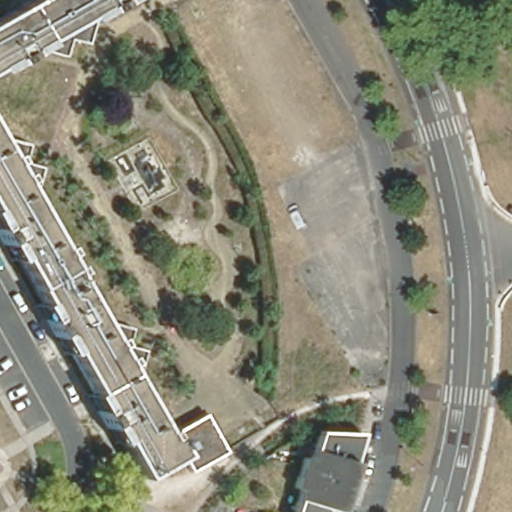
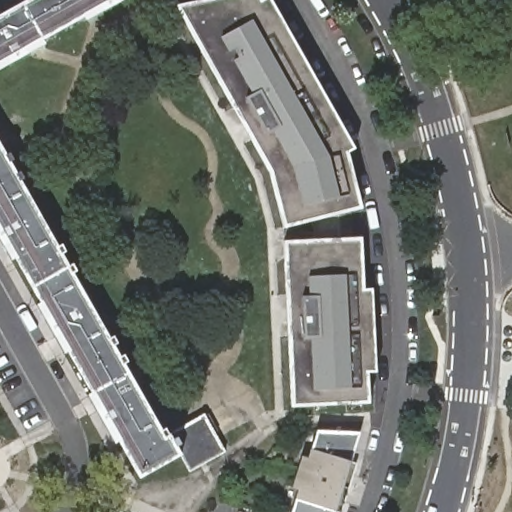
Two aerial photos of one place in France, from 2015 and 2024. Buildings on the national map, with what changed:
unchanged [(119,0),(0,68),(0,19),(33,0),(119,0)]
new [(272,0),(355,149),(348,153),(362,209),(284,227),(271,174),(175,5),(199,0),(272,0)]
unchanged [(201,420),(206,429),(211,427),(215,435),(211,437),(221,456),(186,476),(176,459),(136,481),(0,242),(0,155),(161,441),(201,420)]
new [(360,238),(363,289),(371,289),(376,372),(368,373),(370,404),(292,407),(285,242),(360,238)]
unchanged [(296,493),(290,492),(299,466),(302,459),(308,459),(316,436),(322,436),(361,437),(346,477),(339,496),(337,500),(333,512),(291,512),(296,493)]

